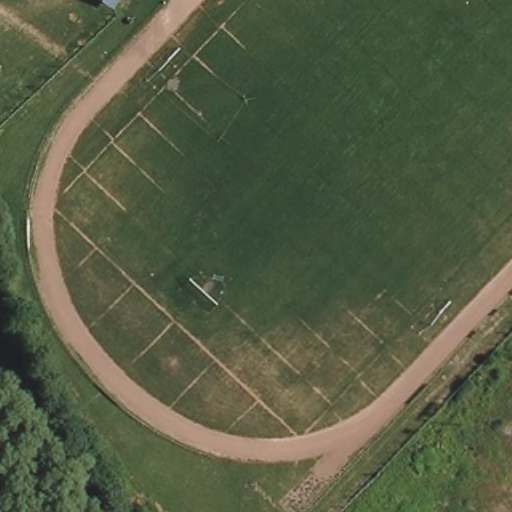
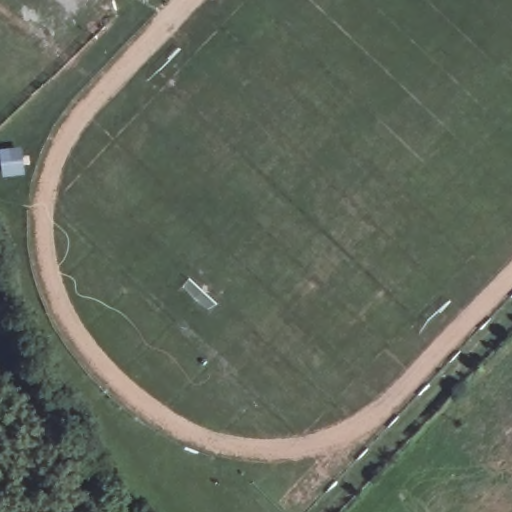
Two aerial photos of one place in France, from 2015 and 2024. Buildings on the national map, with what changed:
[]

